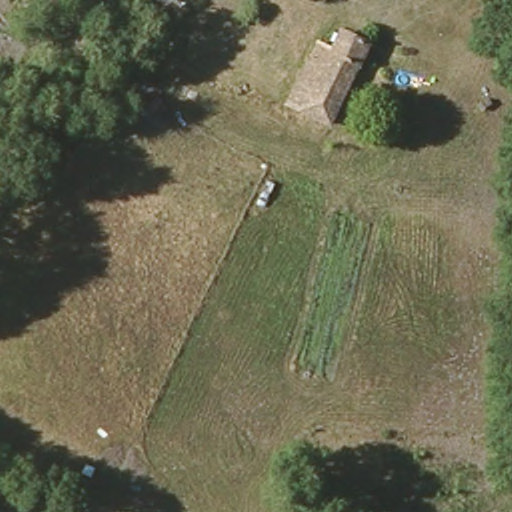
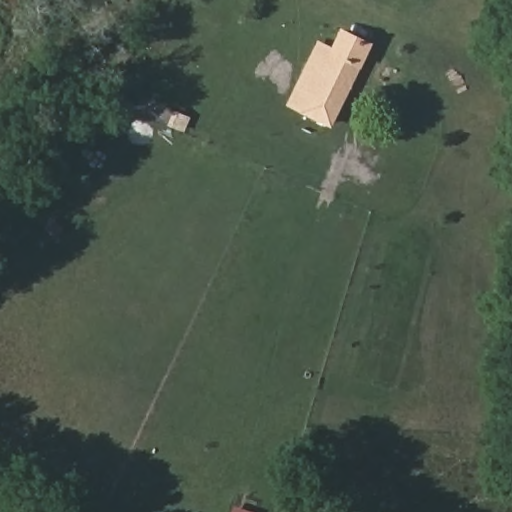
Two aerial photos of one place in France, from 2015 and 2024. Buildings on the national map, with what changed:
unchanged [(329,125),(289,104),(316,49),(334,58),(344,37),(368,49),(329,125)]

